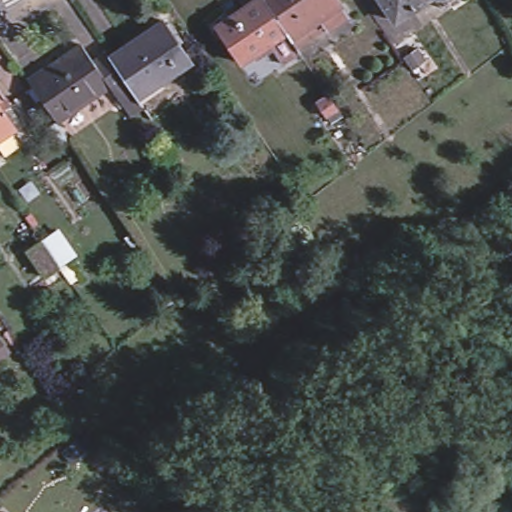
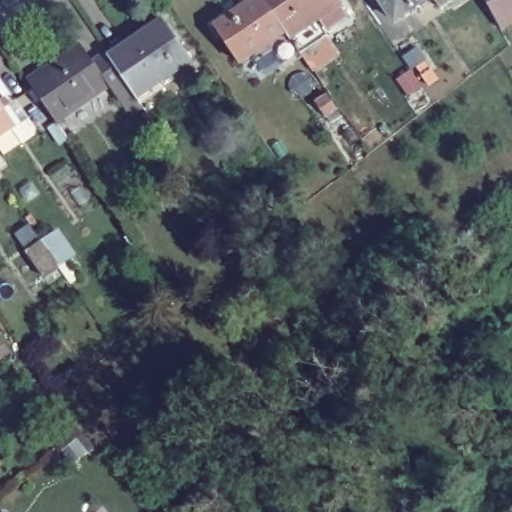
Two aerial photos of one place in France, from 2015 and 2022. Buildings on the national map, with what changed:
unchanged [(242,0),(267,0),(287,30),(241,60),(218,25),(247,6),(242,0)]
unchanged [(320,16),(292,36),(287,30),(267,0),(340,0),(342,2),(340,3),(345,11),(327,25),(320,16)]
unchanged [(381,0),(426,0),(393,20),(381,0)]
unchanged [(437,0),(451,0),(442,6),(437,0)]
new [(512,0),(512,24),(502,29),(486,0),(512,0)]
unchanged [(112,55),(167,19),(194,60),(140,97),(112,55)]
unchanged [(32,79),(85,44),(97,60),(113,85),(60,121),(32,79)]
unchanged [(133,115),(113,85),(97,60),(109,51),(112,55),(140,97),(145,106),(133,115)]
unchanged [(331,120),(322,106),(333,97),(342,111),(331,120)]
unchanged [(0,133),(0,104),(13,124),(0,133)]
unchanged [(50,281),(32,255),(45,245),(63,272),(50,281)]

